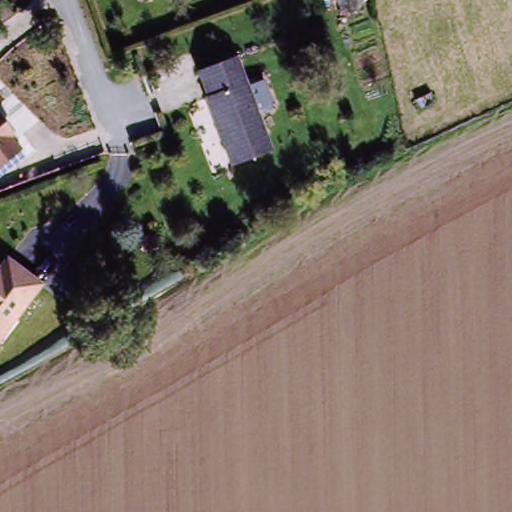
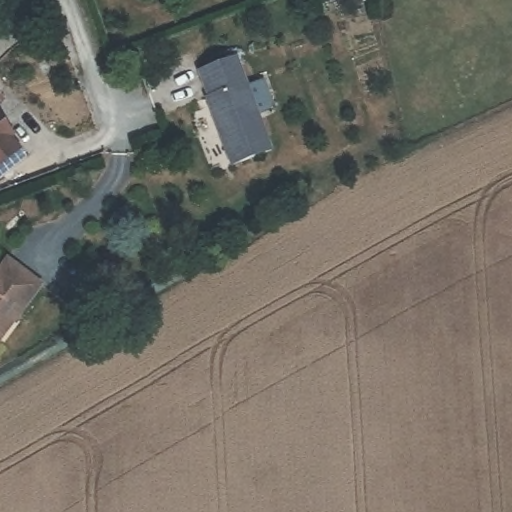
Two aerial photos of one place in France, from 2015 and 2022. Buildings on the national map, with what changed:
unchanged [(209,96),(199,70),(237,57),(269,149),(229,162),(205,96),(209,96)]
unchanged [(18,133),(13,136),(23,149),(0,167),(0,118),(3,117),(18,133)]
unchanged [(0,270),(2,272),(10,262),(18,269),(42,291),(0,342),(0,270)]

